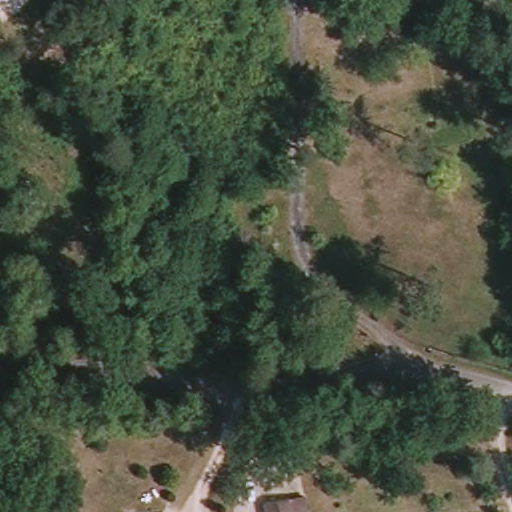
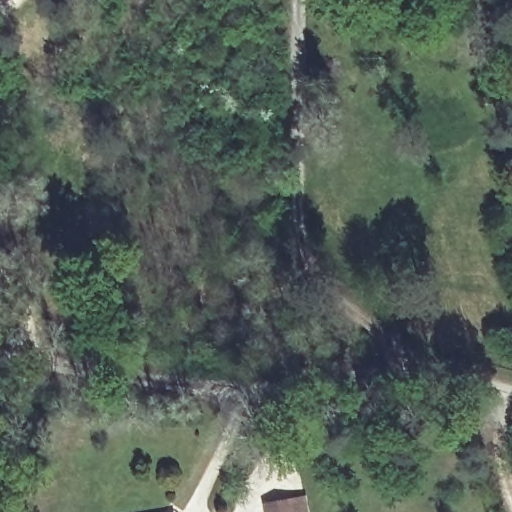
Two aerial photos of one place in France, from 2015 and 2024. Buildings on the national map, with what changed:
unchanged [(308,512),(265,512),(264,507),(304,498),(308,512)]

